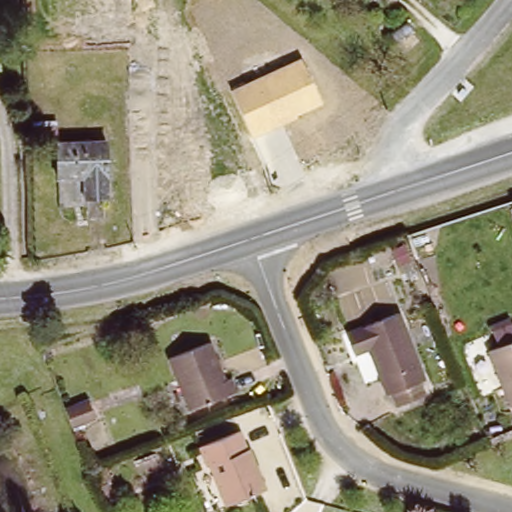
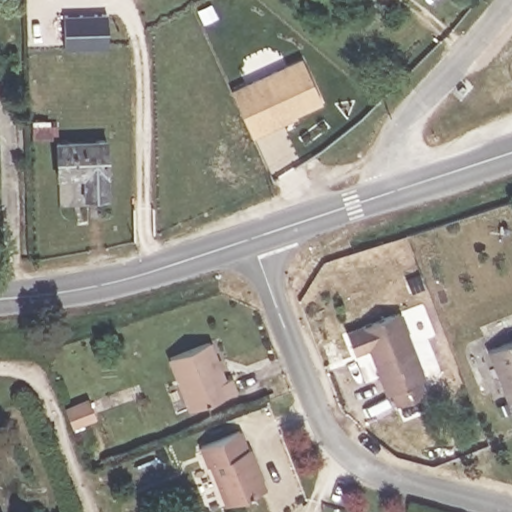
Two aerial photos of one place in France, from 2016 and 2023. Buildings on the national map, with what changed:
new [(63,15),(107,13),(110,48),(67,49),(63,15)]
unchanged [(414,31),(396,42),(389,30),(407,20),(414,31)]
unchanged [(322,104),(297,115),(298,119),(252,138),(231,90),(302,57),(322,104)]
unchanged [(84,194),(84,178),(57,179),(57,141),(107,140),(107,194),(84,194)]
unchanged [(390,391),(387,393),(369,348),(355,353),(347,333),(397,312),(425,377),(419,381),(423,391),(410,397),(395,404),(390,391)]
unchanged [(495,346),(505,343),(500,328),(512,323),(512,393),(495,346)]
unchanged [(225,378),(234,375),(240,390),(191,406),(170,354),(211,338),(225,378)]
unchanged [(245,448),(251,446),(267,492),(227,502),(212,462),(205,464),(199,444),(239,429),(245,448)]

